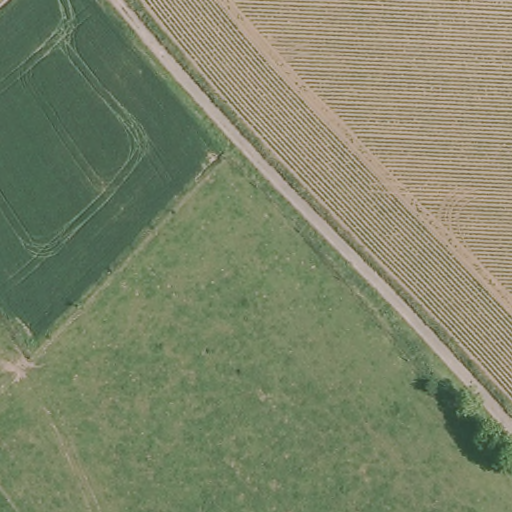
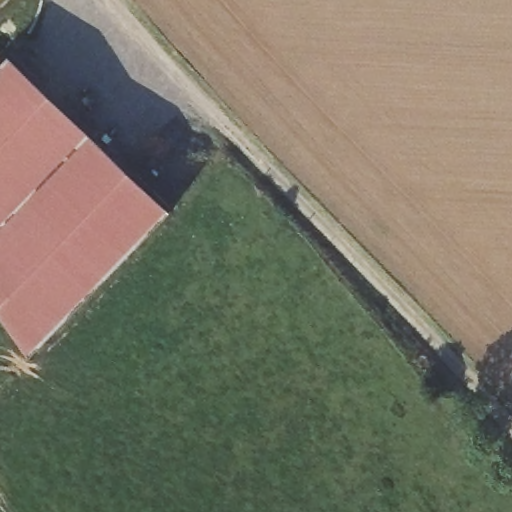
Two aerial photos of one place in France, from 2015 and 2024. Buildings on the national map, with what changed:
new [(29,353),(0,309),(0,70),(13,56),(169,207),(29,353)]

